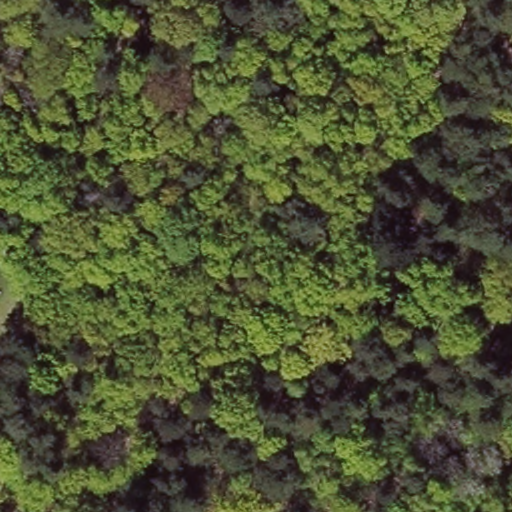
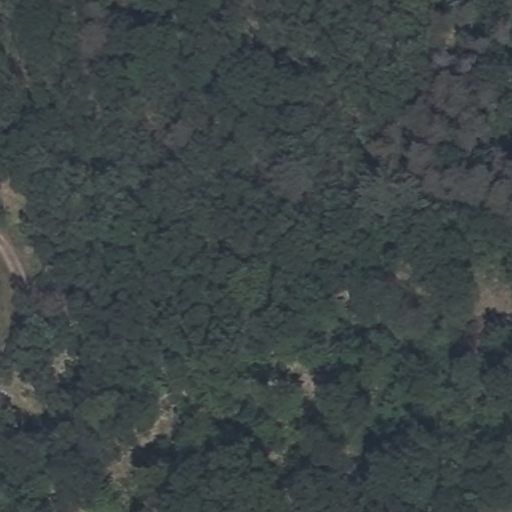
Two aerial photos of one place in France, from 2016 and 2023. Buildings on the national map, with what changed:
unchanged [(5,227),(0,225),(0,198),(12,203),(5,227)]

